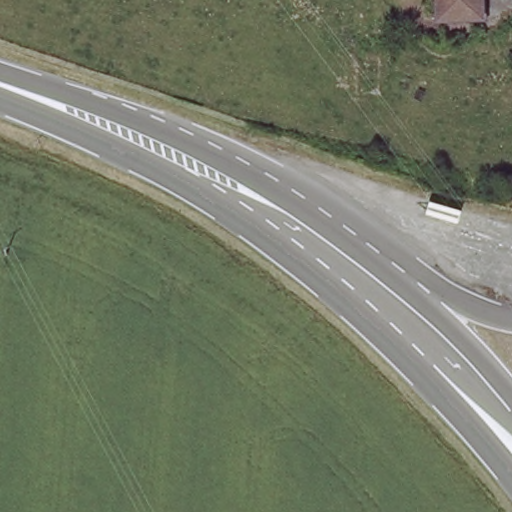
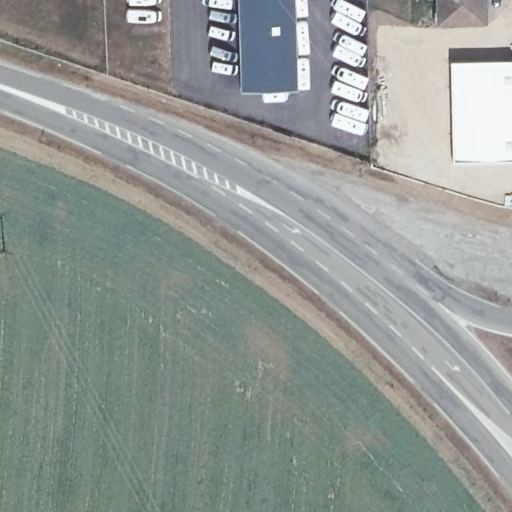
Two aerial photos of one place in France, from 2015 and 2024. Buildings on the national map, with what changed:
new [(299,52),(298,87),(238,89),(235,0),(296,0),(299,52)]
unchanged [(435,16),(435,0),(480,0),(480,13),(435,16)]
new [(512,158),(450,160),(449,59),(512,57),(512,158)]

